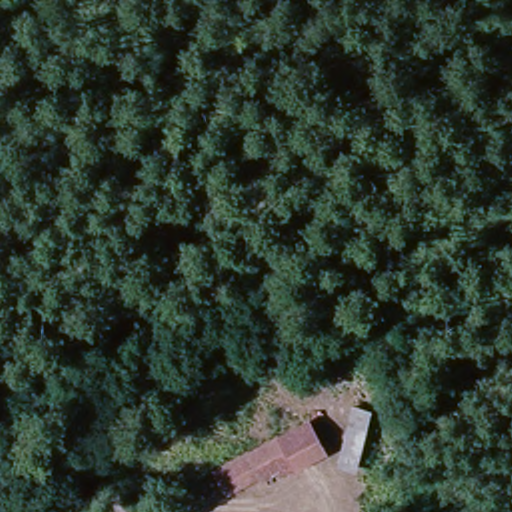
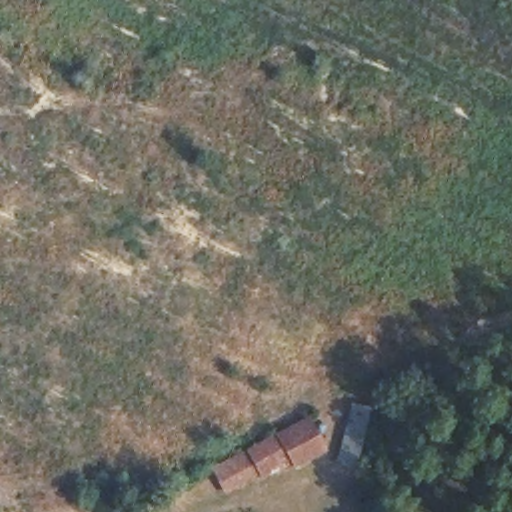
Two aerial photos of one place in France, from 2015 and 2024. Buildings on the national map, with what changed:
unchanged [(348,406),(371,410),(359,474),(336,468),(348,406)]
unchanged [(307,420),(327,461),(292,478),(287,471),(254,488),(250,479),(216,496),(208,473),(307,420)]

